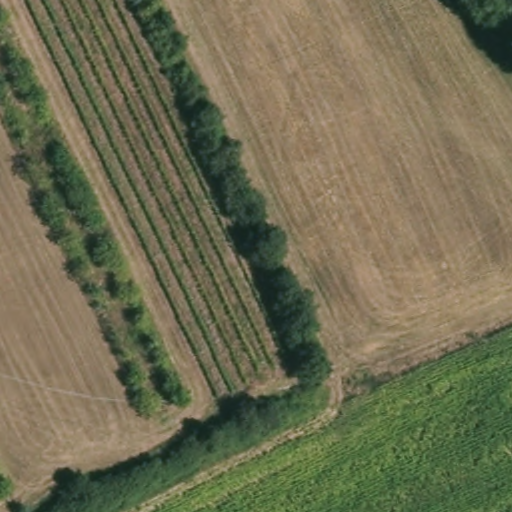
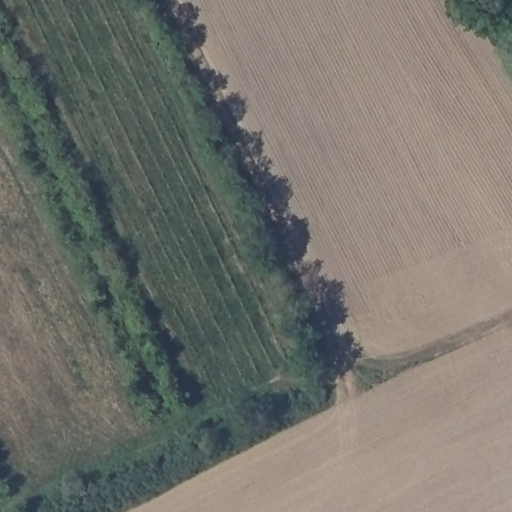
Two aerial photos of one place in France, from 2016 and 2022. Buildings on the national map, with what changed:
[]

